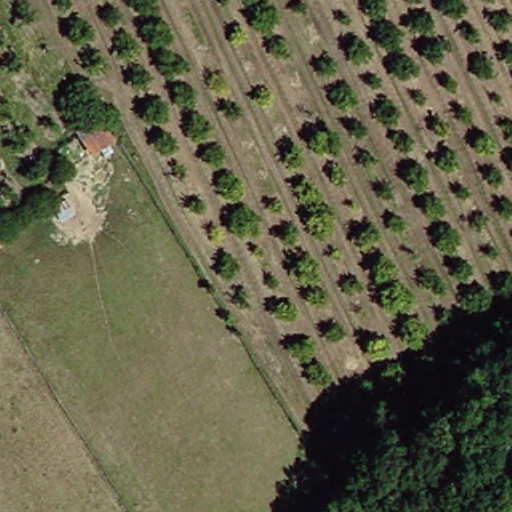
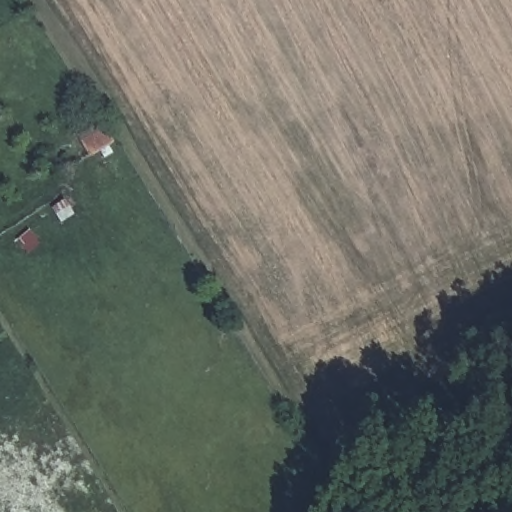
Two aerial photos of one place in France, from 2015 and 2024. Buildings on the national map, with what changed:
unchanged [(113,119),(88,132),(79,119),(103,103),(113,119)]

